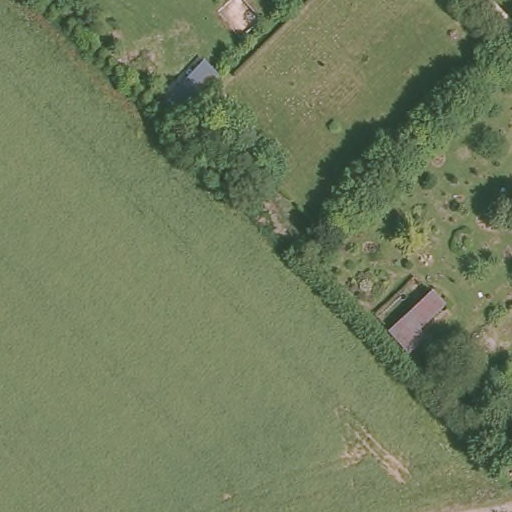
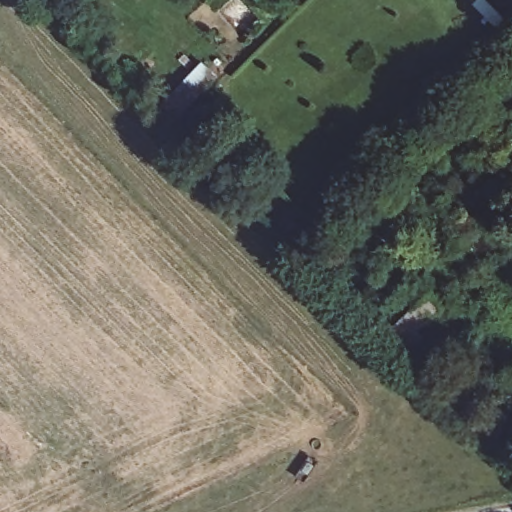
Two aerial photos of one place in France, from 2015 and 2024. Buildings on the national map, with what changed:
unchanged [(449,306),(424,331),(432,341),(411,359),(387,332),(432,290),(449,306)]

